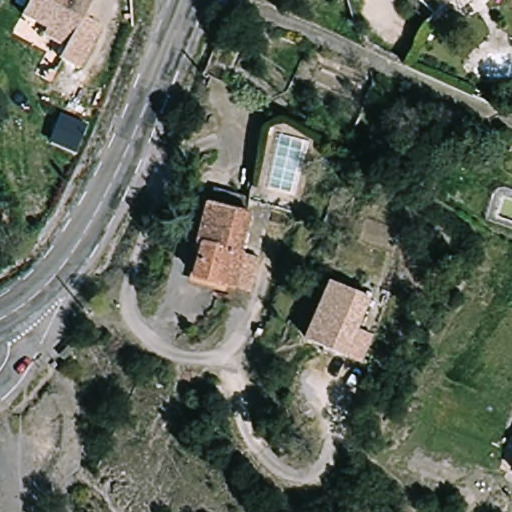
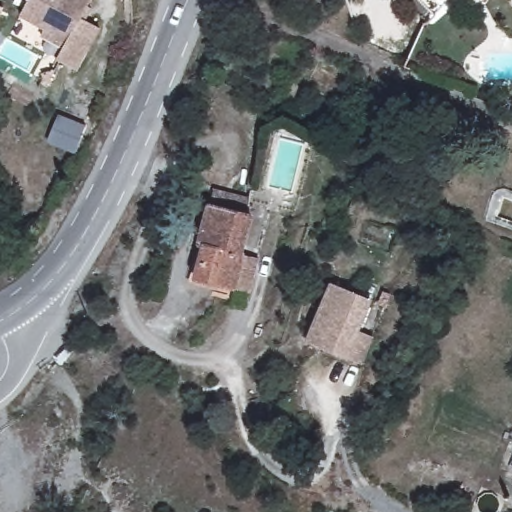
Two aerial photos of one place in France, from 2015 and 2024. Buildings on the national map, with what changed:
unchanged [(23,24),(31,0),(85,0),(84,0),(89,1),(85,14),(99,19),(84,65),(64,59),(68,46),(47,40),(49,33),(23,24)]
unchanged [(263,258),(254,292),(236,288),(235,287),(234,292),(234,293),(195,283),(203,250),(197,249),(206,208),(210,194),(254,204),(251,219),(243,253),(246,254),(263,258)]
unchanged [(361,363),(346,358),(306,343),(328,282),(368,297),(356,330),(371,335),(361,363)]

